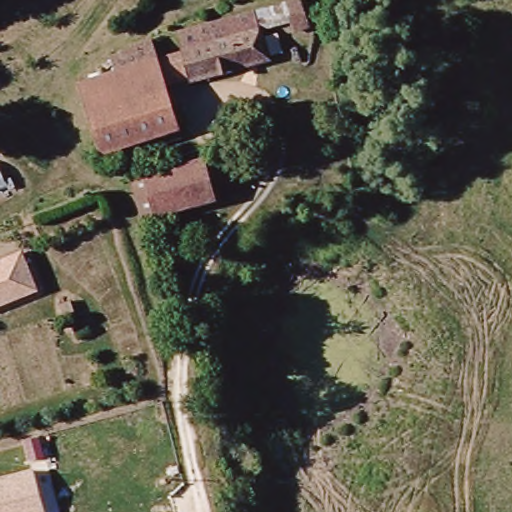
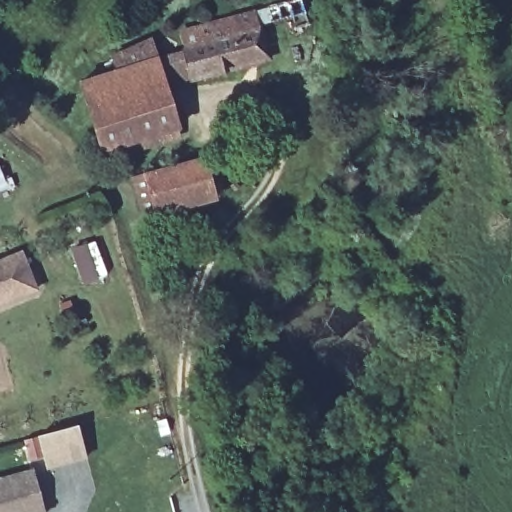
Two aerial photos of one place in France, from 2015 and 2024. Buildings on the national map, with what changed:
unchanged [(277,16),(247,25),(254,45),(265,42),(267,49),(186,74),(174,31),(277,0),(288,0),(295,25),(280,29),(277,16)]
unchanged [(81,83),(120,71),(114,52),(150,41),(175,125),(100,147),(81,83)]
unchanged [(155,211),(145,174),(199,159),(209,197),(155,211)]
new [(0,182),(0,175),(2,180),(0,182)]
unchanged [(0,260),(15,255),(26,289),(0,297),(0,260)]
new [(28,462),(22,441),(77,426),(86,460),(43,471),(40,458),(28,462)]
unchanged [(44,512),(0,512),(0,479),(33,470),(44,512)]

